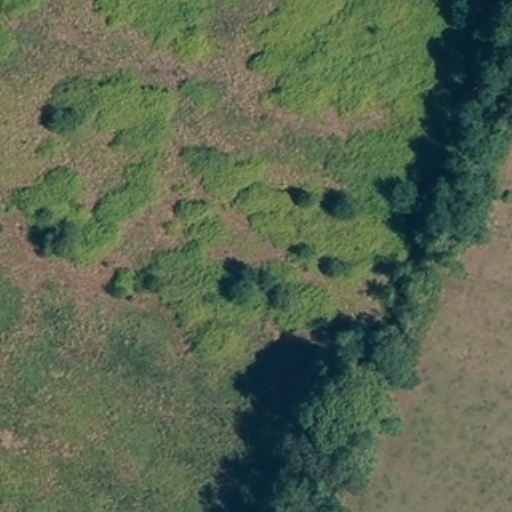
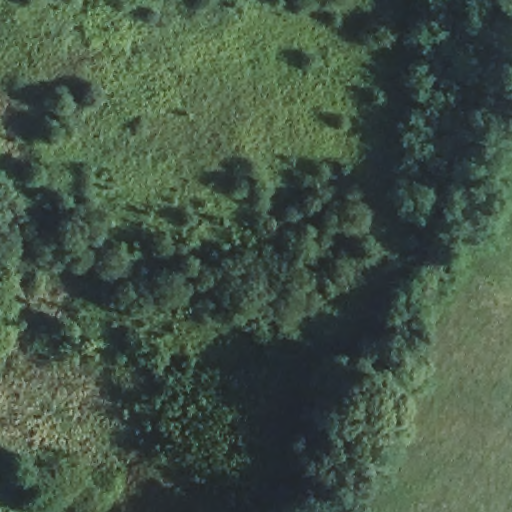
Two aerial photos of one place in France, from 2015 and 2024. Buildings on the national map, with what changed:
[]

